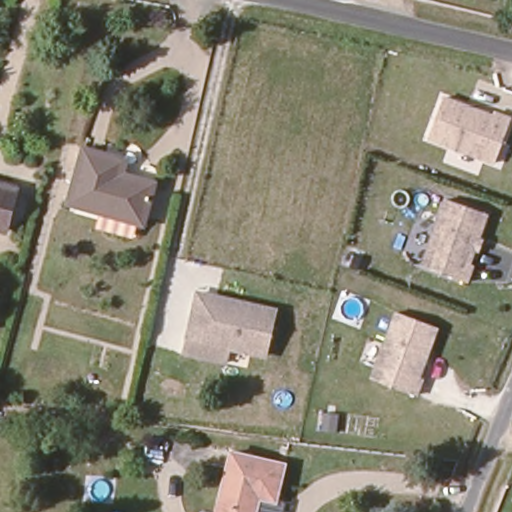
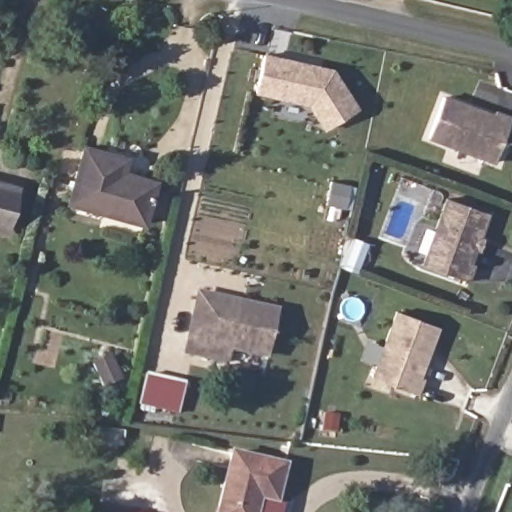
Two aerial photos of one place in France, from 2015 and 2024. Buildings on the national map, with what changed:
new [(261,57),(337,72),(365,107),(334,132),(316,109),(252,95),(261,57)]
unchanged [(492,114),(493,111),(510,117),(495,161),(428,138),(441,97),(492,114)]
unchanged [(130,158),(127,174),(159,184),(150,222),(74,204),(86,148),(130,158)]
unchanged [(17,192),(7,231),(0,229),(0,188),(17,192)]
unchanged [(449,197),(490,212),(472,262),(475,262),(469,280),(424,263),(449,197)]
unchanged [(260,370),(184,353),(187,337),(197,292),(239,302),(273,309),(260,370)]
unchanged [(439,325),(419,375),(423,376),(416,392),(372,375),(398,310),(439,325)]
new [(139,405),(146,375),(186,383),(179,414),(139,405)]
unchanged [(259,502),(256,512),(218,512),(230,456),(284,468),(277,505),(259,502)]
unchanged [(286,507),(285,512),(256,512),(259,502),(277,505),(286,507)]
new [(99,508),(127,512),(98,512),(99,508)]

